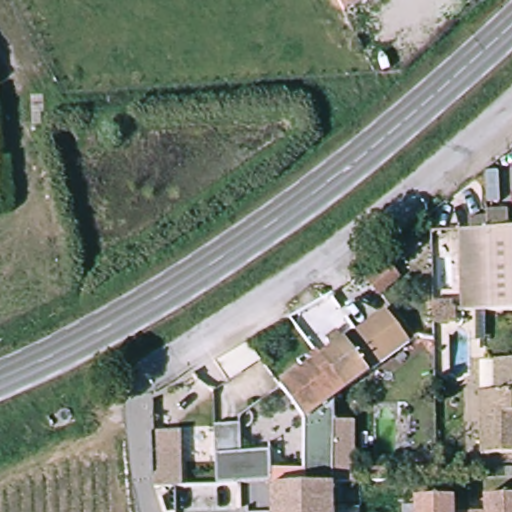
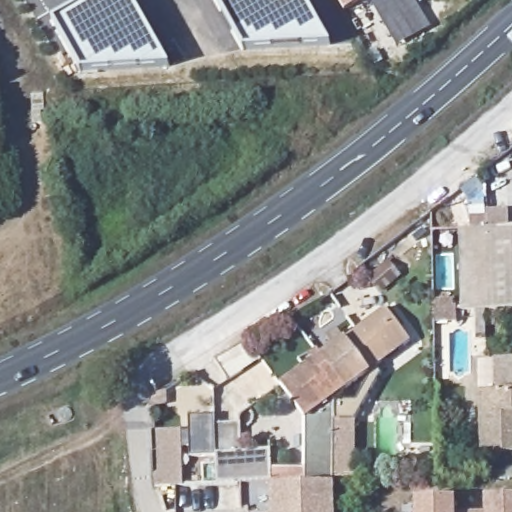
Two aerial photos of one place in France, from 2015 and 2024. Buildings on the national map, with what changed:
new [(80,74),(52,20),(90,0),(133,0),(169,68),(80,74)]
new [(245,50),(217,0),(305,0),(329,45),(245,50)]
unchanged [(345,4),(342,0),(353,0),(345,4)]
unchanged [(43,93),(42,121),(32,121),(32,93),(43,93)]
unchanged [(457,226),(466,226),(467,214),(483,213),(485,226),(512,226),(512,307),(457,309),(457,226)]
unchanged [(434,299),(450,298),(450,309),(434,309),(434,299)]
unchanged [(404,337),(340,388),(314,357),(326,345),(321,336),(334,326),(342,335),(379,305),(404,337)]
unchanged [(336,391),(302,419),(277,387),(314,357),(340,388),(336,391)]
unchanged [(512,449),(480,450),(479,387),(495,386),(495,358),(512,357),(512,449)]
unchanged [(300,476),(302,419),(336,391),(334,415),(354,415),(352,455),(350,475),(330,475),(330,512),(269,512),(269,477),(300,476)]
unchanged [(214,478),(212,417),(237,417),(238,445),(268,444),(269,477),(214,478)]
unchanged [(177,429),(179,484),(149,485),(149,430),(177,429)]
unchanged [(485,511),(485,496),(512,495),(512,512),(470,512),(470,511),(485,511)]
unchanged [(433,497),(455,497),(455,512),(415,512),(415,498),(433,497)]
unchanged [(470,512),(455,512),(470,511),(470,512)]

